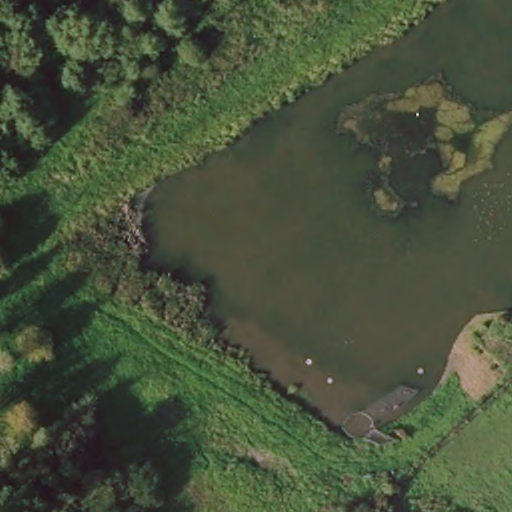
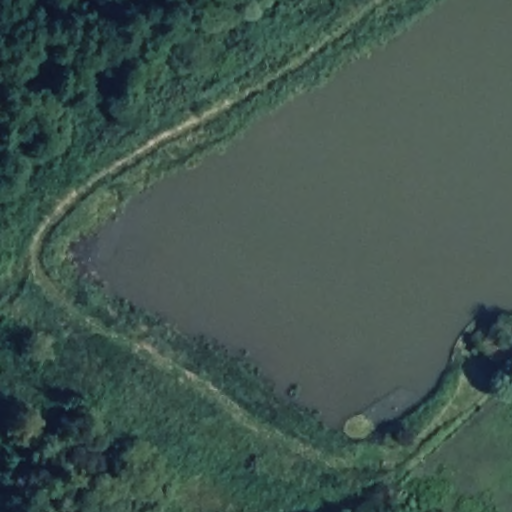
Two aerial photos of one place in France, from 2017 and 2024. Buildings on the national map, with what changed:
unchanged [(501,375),(474,350),(505,322),(512,329),(512,364),(501,375)]

